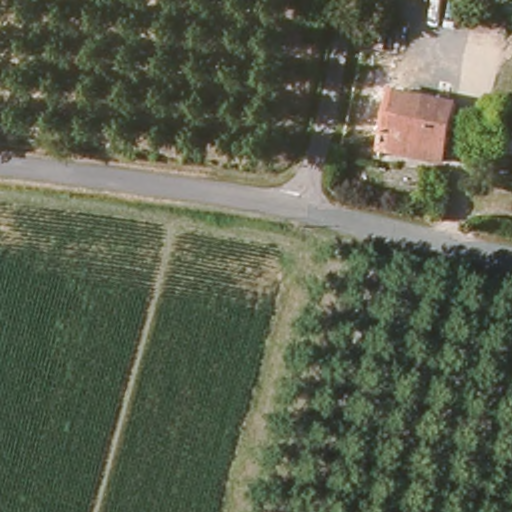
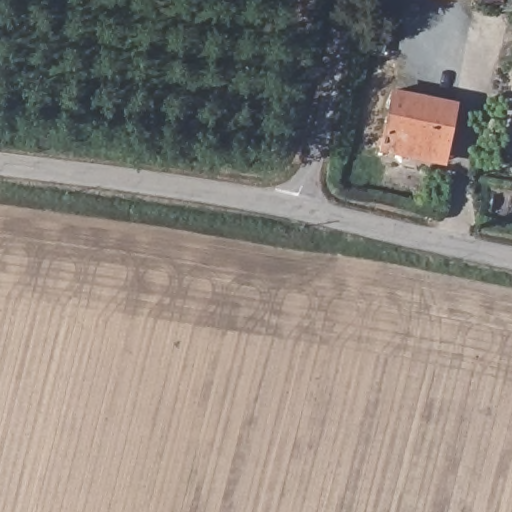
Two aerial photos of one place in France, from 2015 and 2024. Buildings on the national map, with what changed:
unchanged [(466,0),(477,0),(476,1),(466,0)]
unchanged [(492,3),(476,1),(477,0),(506,0),(505,4),(492,3)]
unchanged [(402,64),(396,93),(352,85),(358,55),(402,64)]
unchanged [(396,93),(385,151),(383,160),(340,150),(352,85),(396,93)]
unchanged [(428,161),(385,151),(396,93),(457,105),(445,154),(443,164),(428,161)]

